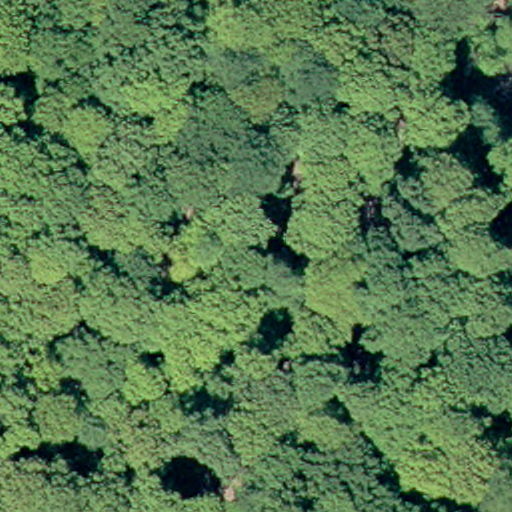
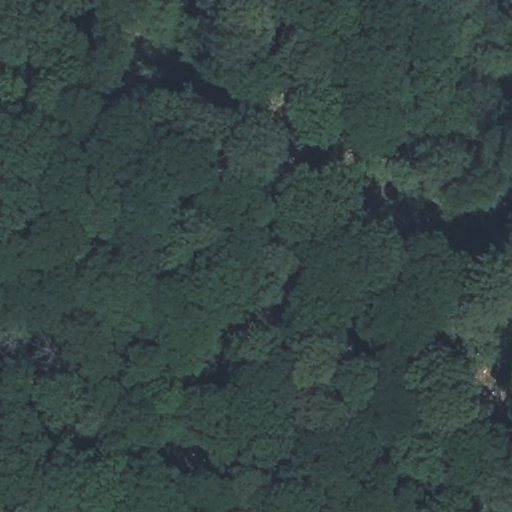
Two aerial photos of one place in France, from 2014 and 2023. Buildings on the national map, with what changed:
[]

